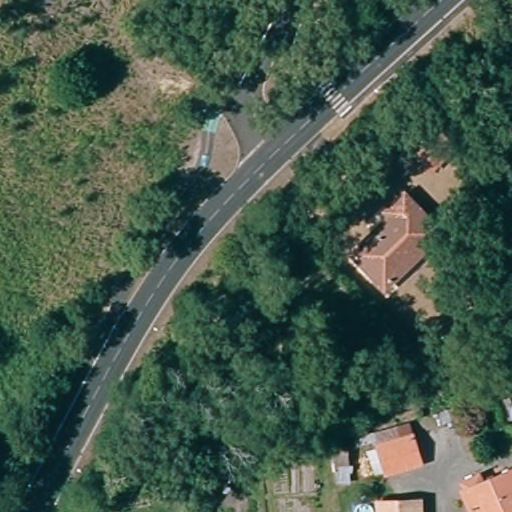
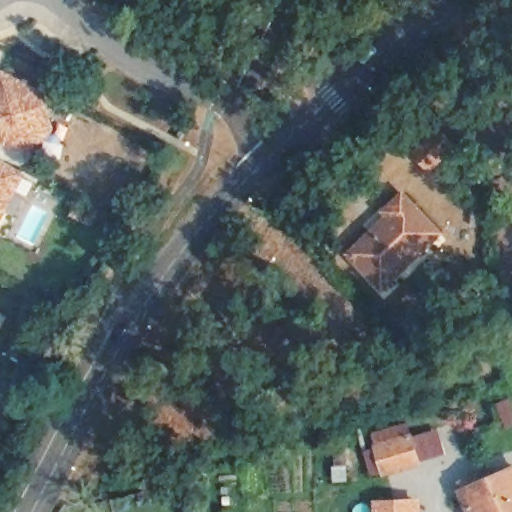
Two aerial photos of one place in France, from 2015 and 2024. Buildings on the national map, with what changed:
new [(0,144),(0,79),(2,75),(41,95),(50,123),(52,132),(47,145),(37,146),(32,155),(13,145),(11,150),(1,145),(0,144)]
unchanged [(460,145),(433,171),(416,154),(445,125),(460,145)]
new [(0,222),(0,163),(24,175),(0,222)]
unchanged [(376,288),(343,254),(382,217),(378,212),(395,196),(432,234),(376,288)]
unchanged [(413,464),(377,475),(375,470),(366,472),(359,451),(368,448),(365,434),(400,423),(413,464)]
unchanged [(458,492),(512,469),(512,512),(466,512),(458,492)]
unchanged [(412,512),(368,512),(367,501),(412,500),(412,512)]

